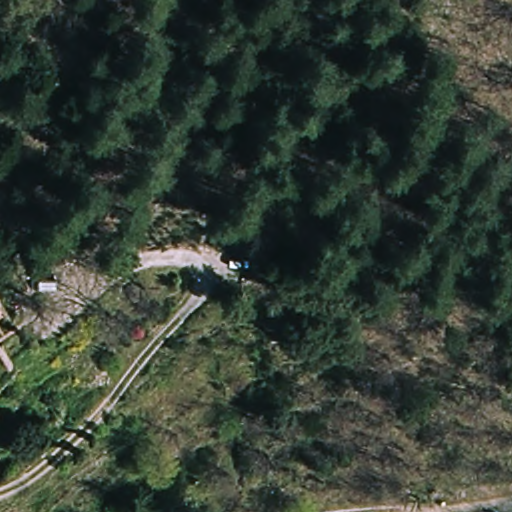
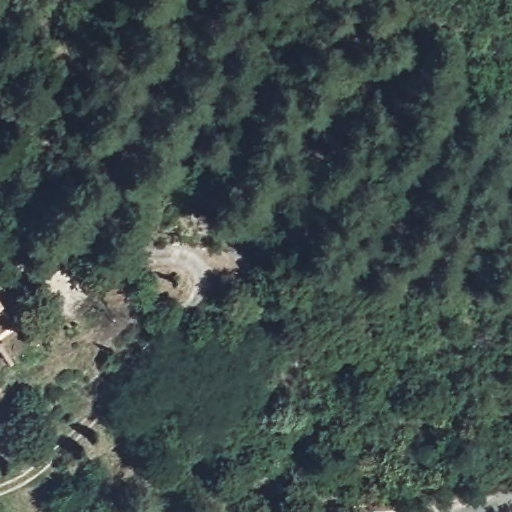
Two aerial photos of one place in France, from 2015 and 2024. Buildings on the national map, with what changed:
unchanged [(0,312),(0,308),(2,310),(0,312)]
unchanged [(0,382),(3,385),(0,389),(0,382)]

